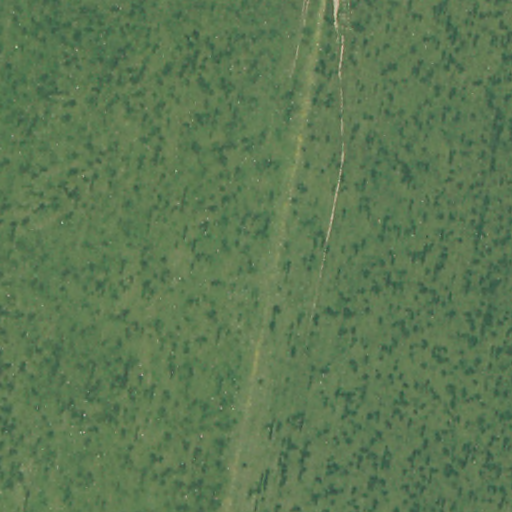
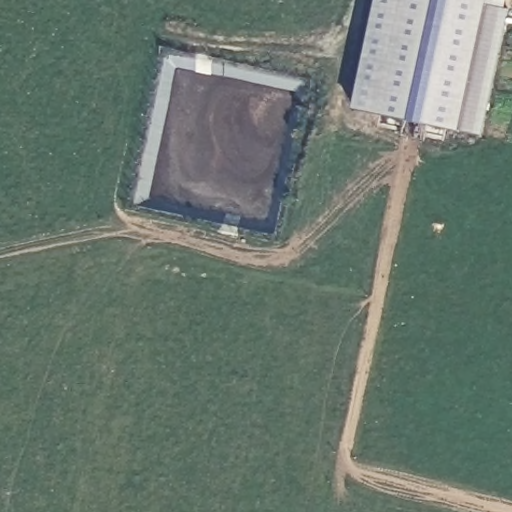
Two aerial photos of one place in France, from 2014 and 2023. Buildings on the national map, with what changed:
new [(510,9),(482,136),(353,110),(377,0),(507,0),(505,8),(510,9)]

